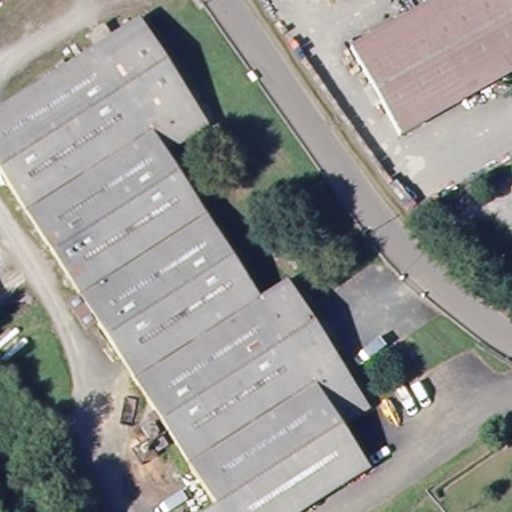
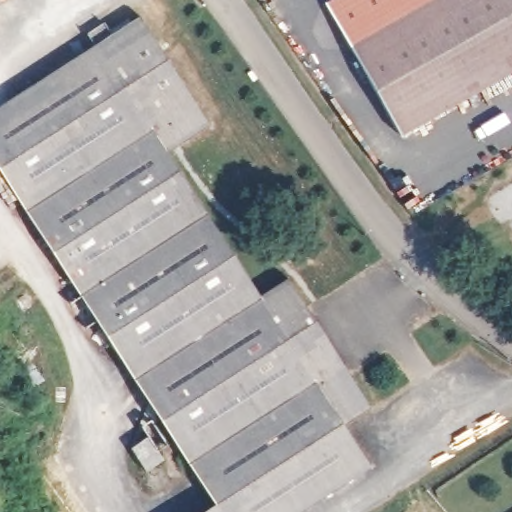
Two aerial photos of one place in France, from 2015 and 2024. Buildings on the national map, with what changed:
new [(332,0),(430,0),(431,1),(353,47),(327,3),(332,0)]
unchanged [(512,68),(394,136),(345,51),(431,1),(430,0),(512,0),(512,68)]
unchanged [(131,28),(202,136),(161,165),(255,306),(282,288),(307,325),(344,381),(365,413),(340,429),(338,425),(231,496),(241,512),(200,512),(207,507),(100,342),(0,189),(0,115),(131,28)]
unchanged [(158,445),(148,451),(133,427),(143,421),(158,445)]
unchanged [(295,512),(241,512),(231,496),(338,425),(340,429),(364,465),(295,512)]
unchanged [(103,512),(54,512),(31,478),(62,456),(103,512)]

